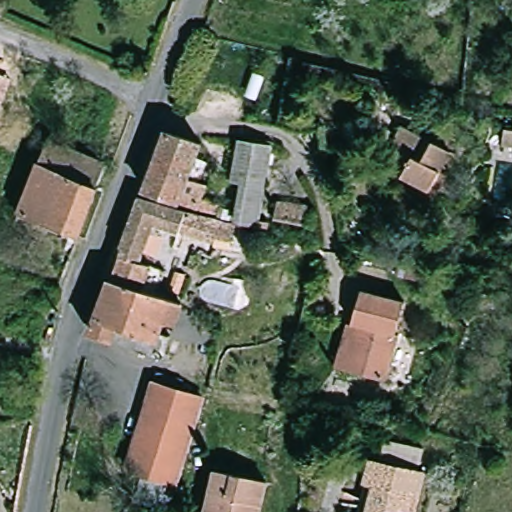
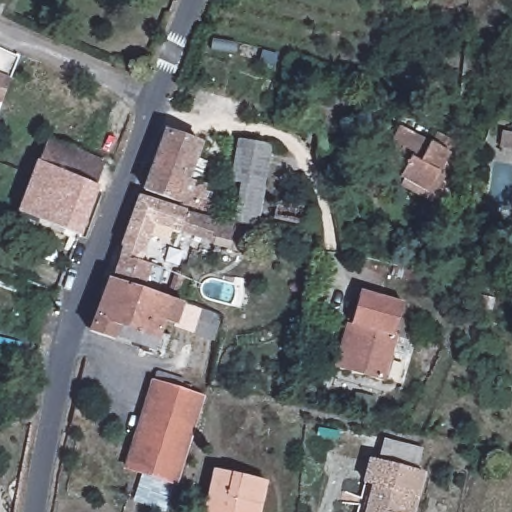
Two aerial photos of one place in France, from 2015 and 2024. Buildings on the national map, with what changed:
unchanged [(3,105),(0,104),(0,73),(12,78),(3,105)]
unchanged [(399,179),(403,171),(401,170),(403,167),(390,160),(403,139),(397,135),(404,122),(449,149),(438,167),(446,171),(434,190),(431,197),(399,179)]
unchanged [(167,128),(201,139),(189,175),(210,182),(206,195),(228,201),(223,213),(146,188),(167,128)]
unchanged [(105,159),(98,179),(65,166),(39,157),(48,136),(69,145),(105,159)]
unchanged [(238,136),(272,141),(259,213),(267,217),(265,225),(238,215),(244,182),(231,178),(238,136)]
unchanged [(496,153),(499,145),(512,151),(512,155),(510,159),(496,153)]
unchanged [(65,166),(98,179),(80,229),(40,214),(41,209),(23,202),(39,157),(65,166)]
unchanged [(118,270),(124,249),(123,247),(141,195),(143,196),(241,224),(236,236),(221,232),(218,239),(157,225),(144,261),(159,266),(151,290),(115,277),(118,270)]
unchanged [(271,214),(275,197),(314,206),(309,222),(271,214)]
unchanged [(120,331),(95,323),(112,276),(115,277),(151,290),(177,299),(163,337),(161,345),(120,331)]
unchanged [(346,317),(351,319),(363,288),(414,309),(403,337),(405,338),(386,385),(341,367),(328,362),(346,317)]
unchanged [(172,503),(138,492),(143,479),(146,467),(131,462),(158,377),(208,392),(180,478),(176,490),(172,503)]
unchanged [(425,457),(420,480),(428,481),(421,512),(399,512),(399,510),(376,505),(379,491),(371,490),(376,470),(379,470),(386,447),(425,457)]
unchanged [(268,480),(262,512),(210,512),(218,470),(268,480)]
unchanged [(366,512),(371,490),(379,491),(376,505),(399,510),(399,512),(366,512)]

